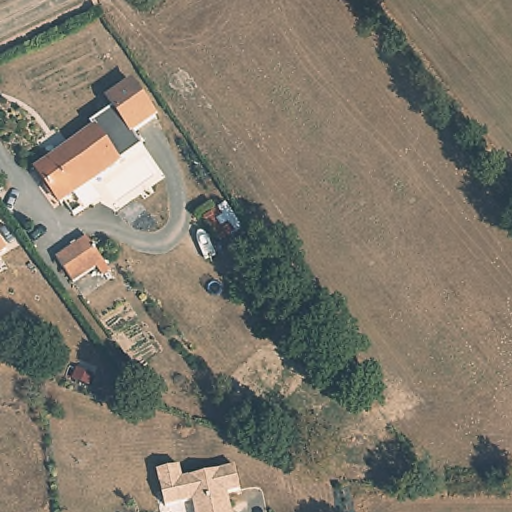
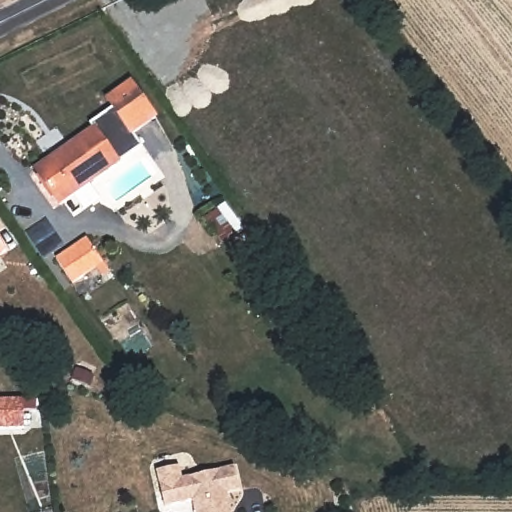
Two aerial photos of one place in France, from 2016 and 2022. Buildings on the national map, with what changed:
unchanged [(92,121),(112,108),(106,101),(130,82),(157,118),(132,136),(140,148),(119,162),(101,133),(95,124),(92,121)]
unchanged [(32,168),(95,124),(119,162),(56,204),(32,168)]
unchanged [(244,236),(219,250),(202,219),(210,214),(205,204),(219,195),(244,236)]
unchanged [(74,284),(57,259),(87,238),(104,262),(74,284)]
unchanged [(0,255),(0,240),(7,250),(0,255)]
new [(25,428),(0,429),(0,399),(24,398),(25,428)]
unchanged [(165,506),(157,470),(179,465),(181,478),(235,466),(240,490),(227,492),(231,511),(231,512),(195,512),(192,500),(165,506)]

